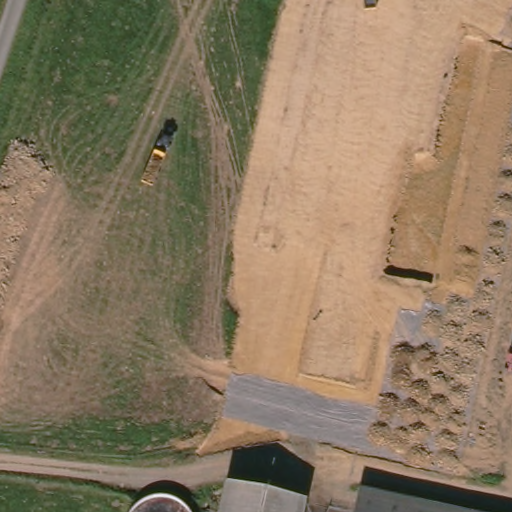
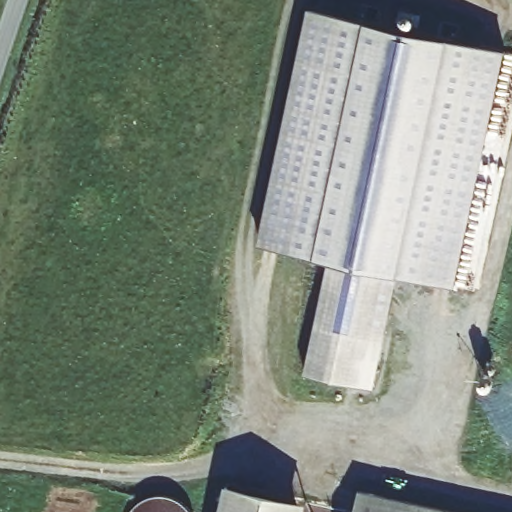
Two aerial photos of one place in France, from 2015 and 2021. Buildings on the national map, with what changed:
new [(303,372),(330,258),(259,242),(311,7),(506,50),(456,285),(398,273),(373,388),(303,372)]
unchanged [(303,505),(301,512),(218,512),(224,486),(303,505)]
unchanged [(367,487),(477,512),(361,512),(367,487)]

